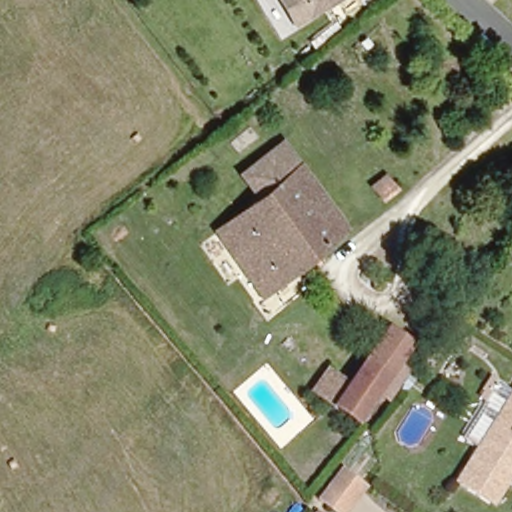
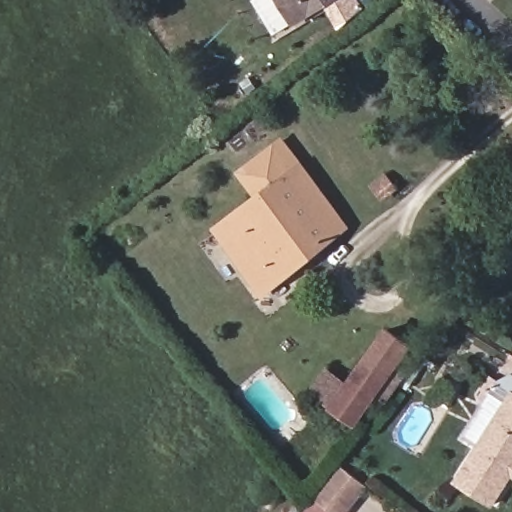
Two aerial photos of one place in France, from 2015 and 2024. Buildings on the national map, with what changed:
unchanged [(291,25),(276,0),(329,0),(291,25)]
unchanged [(259,289),(211,227),(255,192),(237,167),(266,147),(277,139),(297,164),(341,220),(259,289)]
unchanged [(372,176),(382,168),(397,187),(388,194),(372,176)]
unchanged [(378,396),(356,427),(310,393),(325,374),(347,388),(388,326),(398,332),(415,344),(404,360),(398,368),(409,376),(389,405),(378,396)]
unchanged [(491,508),(457,486),(509,395),(512,396),(512,471),(491,508)]
unchanged [(341,470),(366,488),(349,512),(336,512),(319,501),(341,470)]

